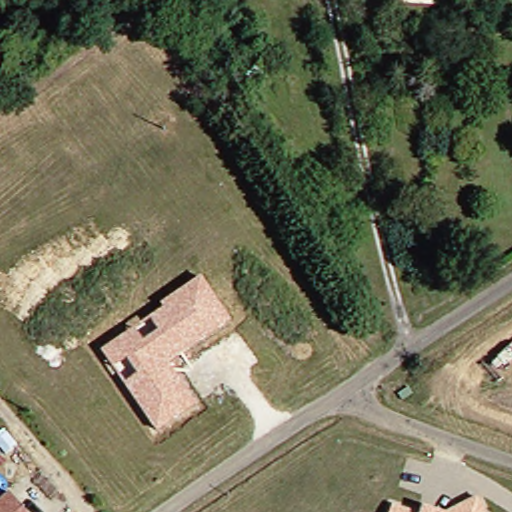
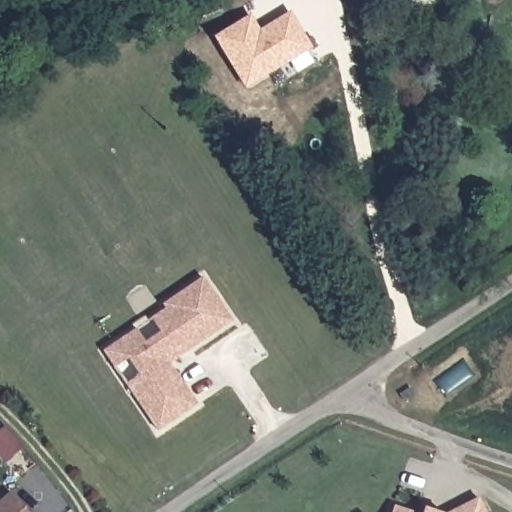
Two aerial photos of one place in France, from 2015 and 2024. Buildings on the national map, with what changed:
new [(312,47),(243,89),(213,37),(250,14),(258,29),(290,11),(312,47)]
unchanged [(163,308),(160,305),(202,277),(232,321),(170,364),(197,403),(156,431),(101,351),(163,308)]
unchanged [(0,512),(0,500),(8,492),(26,512),(0,512)]
demolished [(481,512),(459,512),(475,503),(481,512)]
demolished [(402,512),(394,512),(394,510),(402,512)]

